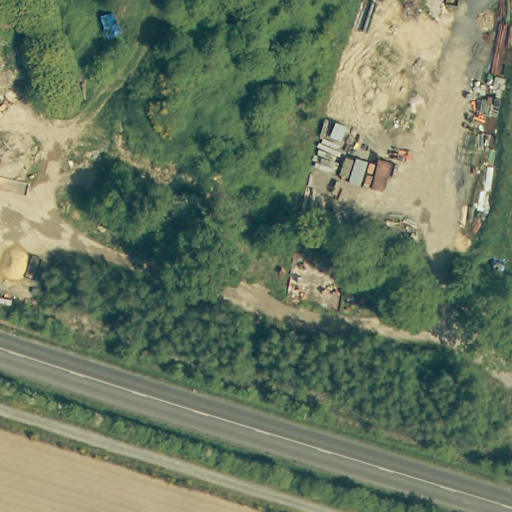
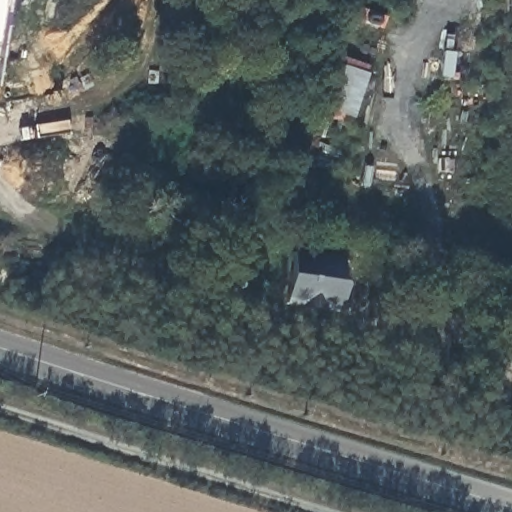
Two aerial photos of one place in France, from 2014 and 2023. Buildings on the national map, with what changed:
new [(342,257),(342,283),(341,311),(285,306),(292,252),(342,257)]

